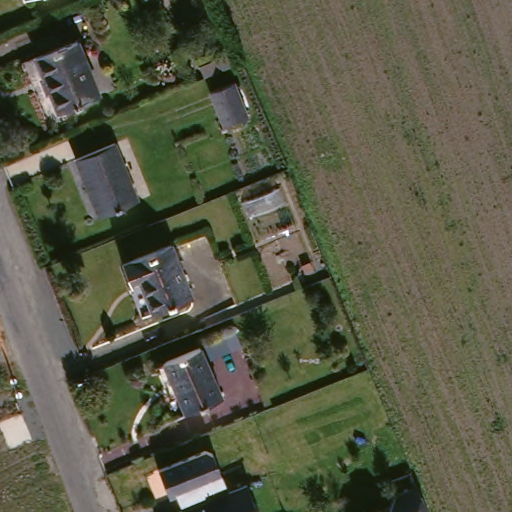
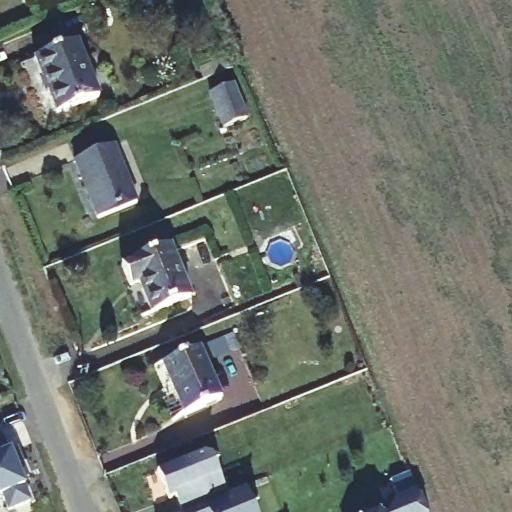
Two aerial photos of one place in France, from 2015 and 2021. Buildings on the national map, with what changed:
unchanged [(79,40),(101,96),(57,113),(36,57),(79,40)]
unchanged [(242,82),(258,119),(234,128),(218,92),(242,82)]
unchanged [(121,143),(143,199),(100,218),(79,161),(121,143)]
unchanged [(176,245),(198,296),(159,312),(146,283),(135,287),(126,265),(176,245)]
unchanged [(204,347),(224,399),(182,415),(164,366),(163,362),(204,347)]
new [(11,442),(19,439),(29,462),(22,464),(33,491),(11,500),(5,484),(0,487),(0,428),(5,426),(11,442)]
unchanged [(154,468),(204,447),(225,493),(245,484),(258,512),(172,512),(154,468)]
unchanged [(391,508),(398,511),(404,493),(426,483),(428,489),(438,512),(383,512),(391,508)]

